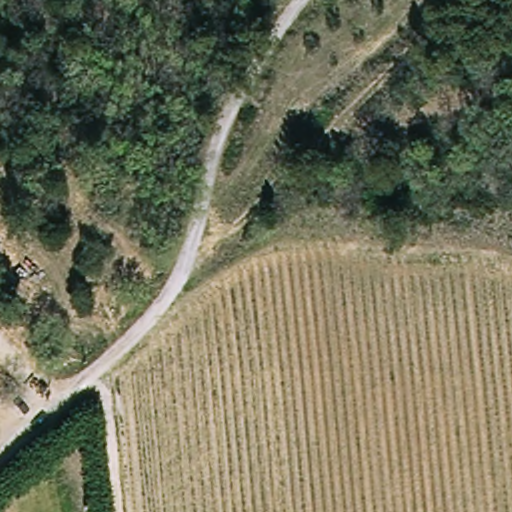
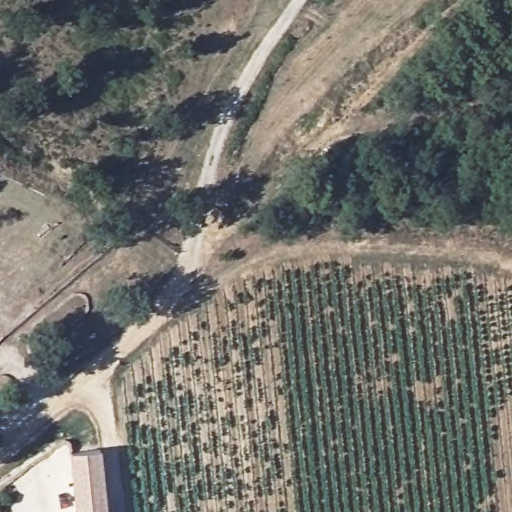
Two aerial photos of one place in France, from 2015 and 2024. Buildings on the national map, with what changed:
unchanged [(0,402),(0,400),(2,401),(0,402)]
new [(101,450),(108,512),(75,512),(70,453),(101,450)]

